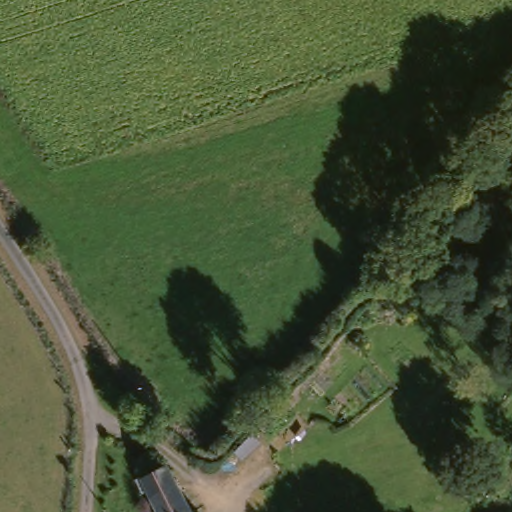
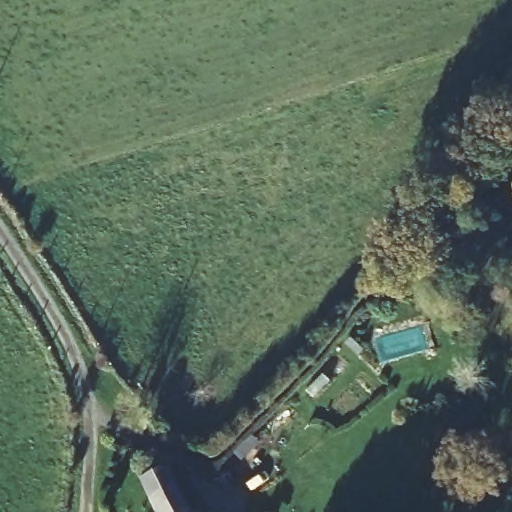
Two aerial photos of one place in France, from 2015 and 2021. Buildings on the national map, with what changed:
unchanged [(144,484),(172,468),(197,512),(156,512),(144,484)]

